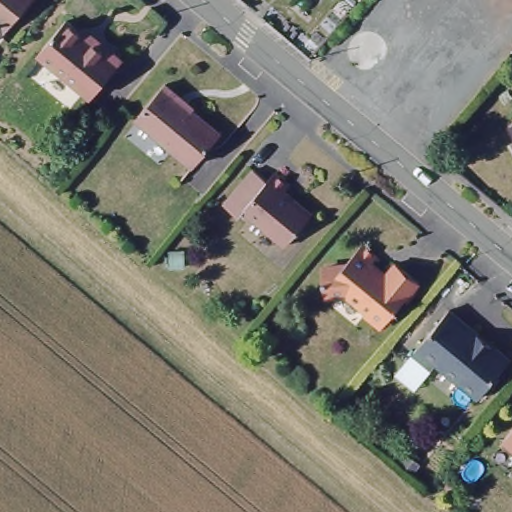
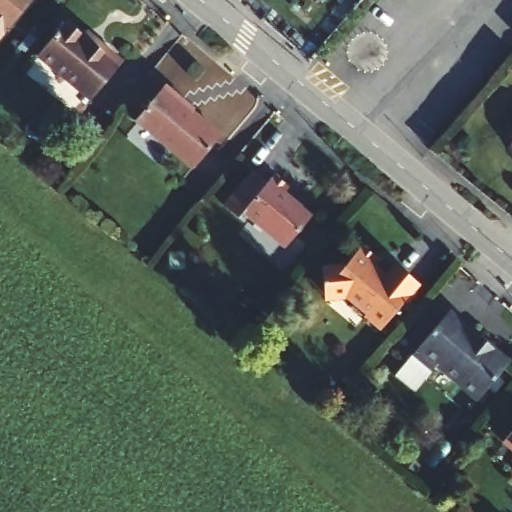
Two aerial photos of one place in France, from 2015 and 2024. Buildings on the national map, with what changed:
unchanged [(0,34),(0,0),(28,0),(0,34)]
unchanged [(66,22),(104,53),(107,49),(123,61),(91,99),(39,56),(66,22)]
unchanged [(162,87),(179,102),(178,105),(218,138),(190,170),(133,121),(162,87)]
unchanged [(254,170),(266,180),(271,174),(286,186),(279,195),(288,203),(291,200),(308,214),(281,247),(243,215),(238,220),(223,207),(254,170)]
unchanged [(348,268),(365,247),(379,258),(374,265),(388,277),(398,265),(422,285),(388,327),(381,329),(369,318),(371,316),(349,296),(331,298),(328,271),(348,268)]
unchanged [(451,313),(512,362),(512,365),(483,401),(421,351),(451,313)]
unchanged [(512,430),(512,450),(503,442),(512,430)]

